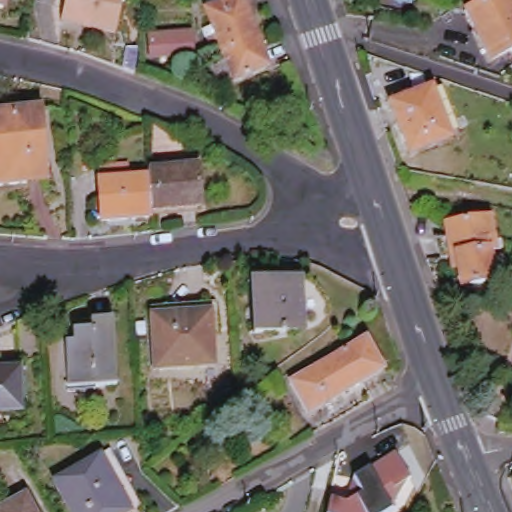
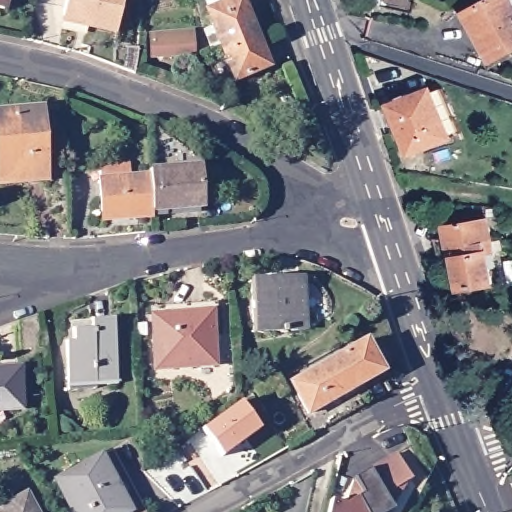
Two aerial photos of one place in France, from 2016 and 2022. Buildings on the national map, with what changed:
unchanged [(0,9),(0,0),(6,0),(4,10),(0,9)]
unchanged [(66,0),(124,0),(117,34),(87,27),(62,22),(62,17),(66,0)]
unchanged [(241,0),(269,67),(235,81),(226,60),(222,50),(215,52),(204,30),(213,26),(210,11),(234,0),(241,0)]
unchanged [(491,0),(512,0),(512,51),(491,62),(465,13),(491,0)]
unchanged [(192,32),(193,53),(153,56),(152,36),(192,32)]
unchanged [(390,106),(432,89),(451,137),(410,155),(390,106)]
unchanged [(40,110),(46,180),(0,183),(0,113),(40,110)]
unchanged [(151,212),(152,212),(152,217),(102,221),(99,181),(101,181),(100,168),(130,166),(130,179),(148,177),(151,212)]
unchanged [(198,169),(202,209),(152,212),(151,212),(148,177),(148,172),(198,169)]
unchanged [(495,219),(501,252),(493,254),(499,285),(465,291),(460,257),(452,258),(445,239),(454,239),(452,225),(495,219)]
unchanged [(300,280),(304,330),(254,333),(250,283),(300,280)]
unchanged [(211,303),(215,365),(155,370),(151,307),(211,303)]
unchanged [(45,358),(25,360),(22,322),(42,314),(45,358)]
unchanged [(97,384),(97,387),(68,388),(66,347),(73,347),(72,322),(91,322),(90,318),(113,317),(117,382),(97,384)]
unchanged [(365,341),(383,372),(308,414),(291,382),(365,341)]
unchanged [(20,369),(22,409),(0,410),(0,370),(20,369)]
new [(238,402),(258,429),(222,456),(202,428),(238,402)]
unchanged [(100,456),(120,493),(130,487),(141,507),(131,512),(73,512),(55,480),(100,456)]
unchanged [(345,508),(361,497),(352,482),(367,472),(367,473),(393,457),(409,482),(405,485),(390,511),(390,512),(327,512),(329,505),(345,508)]
unchanged [(273,492),(277,502),(268,507),(263,497),(273,492)]
unchanged [(26,495),(36,512),(0,512),(0,509),(26,495)]

